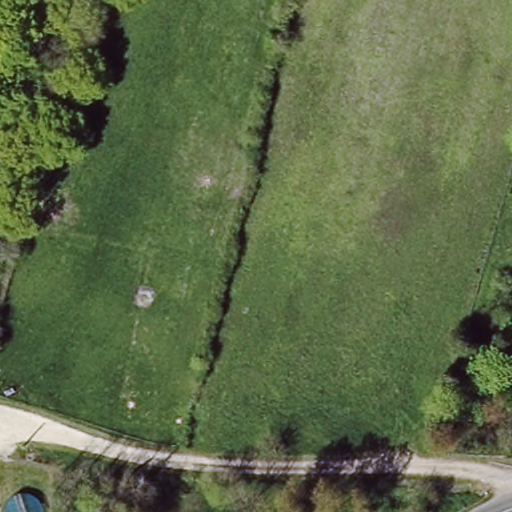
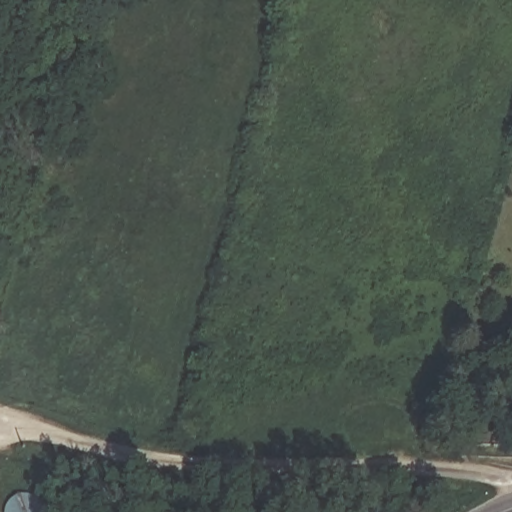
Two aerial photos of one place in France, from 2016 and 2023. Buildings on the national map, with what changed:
unchanged [(30,463),(30,474),(19,474),(19,463),(30,463)]

